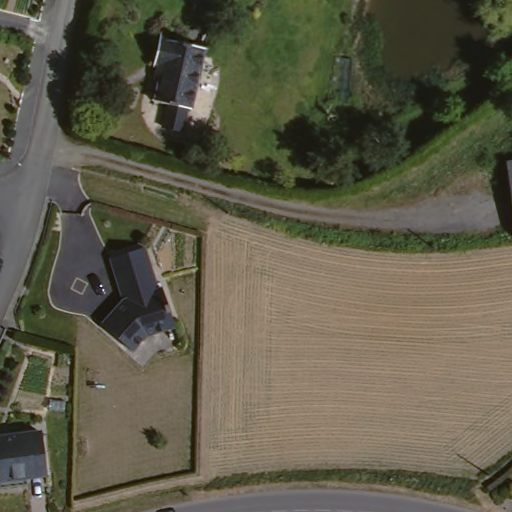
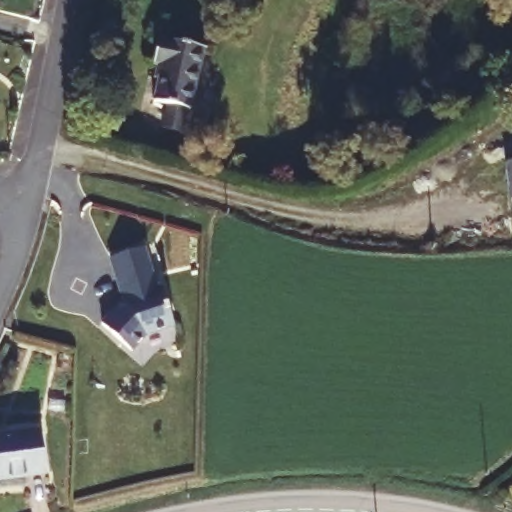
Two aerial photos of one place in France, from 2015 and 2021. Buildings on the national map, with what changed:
unchanged [(164,126),(168,102),(154,100),(163,65),(153,61),(160,36),(205,46),(190,106),(189,106),(184,130),(164,126)]
unchanged [(512,200),(507,162),(512,160),(512,200)]
unchanged [(120,305),(105,263),(138,252),(152,293),(157,292),(170,330),(142,339),(127,353),(100,325),(120,305)]
unchanged [(47,471),(0,478),(0,436),(41,430),(47,471)]

